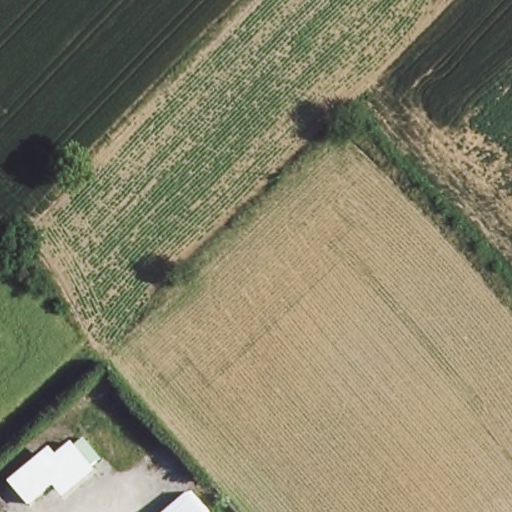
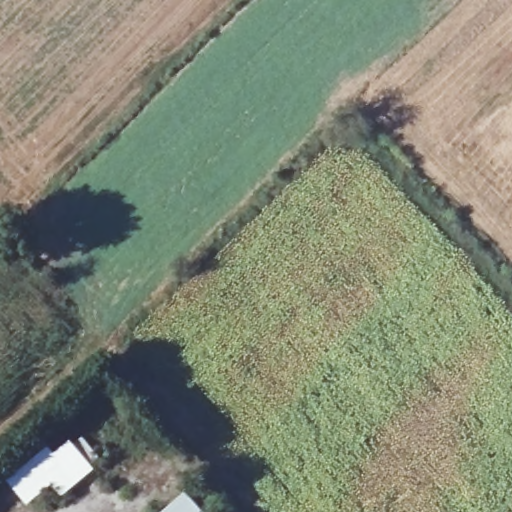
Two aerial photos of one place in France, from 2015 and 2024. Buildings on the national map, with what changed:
unchanged [(50,457),(54,461),(60,456),(71,448),(90,470),(80,479),(71,487),(65,479),(31,508),(15,488),(50,457)]
unchanged [(193,512),(181,512),(187,506),(193,512)]

